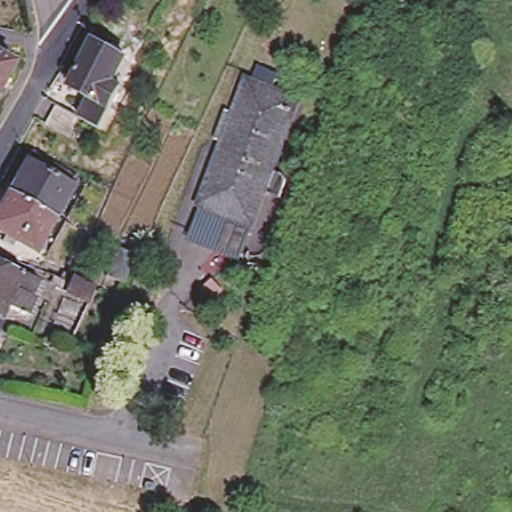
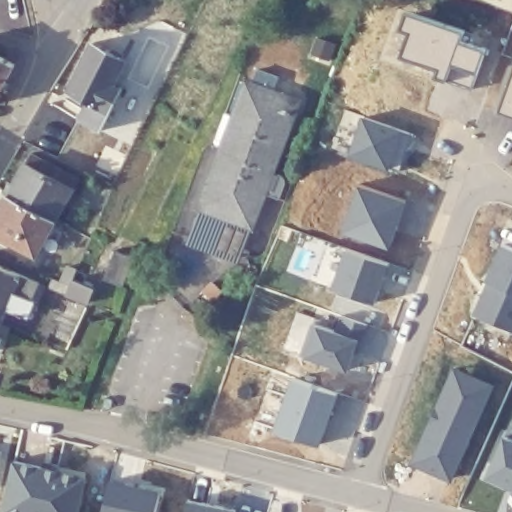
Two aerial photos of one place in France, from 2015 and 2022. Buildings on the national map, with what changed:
new [(461,34),(458,45),(482,53),(472,90),(435,80),(437,72),(398,59),(407,36),(399,32),(405,15),(461,34)]
unchanged [(92,101),(72,91),(95,45),(127,61),(114,87),(122,91),(102,132),(82,121),(71,140),(47,126),(57,108),(80,121),(92,101)]
unchanged [(0,50),(18,61),(0,91),(0,50)]
unchanged [(183,240),(192,218),(195,219),(197,211),(195,210),(213,162),(222,166),(227,150),(213,145),(224,117),(228,119),(243,83),(250,85),(255,71),(275,78),(268,92),(296,103),(268,175),(275,177),(276,178),(277,179),(278,180),(278,181),(279,181),(280,183),(280,184),(280,185),(280,186),(280,187),(273,201),(260,196),(248,225),(246,230),(232,224),(229,232),(243,237),(235,259),(212,250),(202,247),(186,241),(183,240)]
new [(498,114),(512,75),(512,119),(498,114)]
new [(407,135),(395,172),(347,159),(361,119),(407,135)]
unchanged [(4,190),(22,159),(27,150),(73,176),(68,185),(51,216),(4,190)]
new [(405,204),(388,252),(340,236),(355,188),(405,204)]
unchanged [(0,197),(4,190),(51,216),(31,250),(0,233),(0,197)]
unchanged [(135,248),(125,277),(108,271),(118,242),(135,248)]
new [(491,284),(489,283),(505,246),(512,249),(512,332),(477,317),(491,284)]
new [(387,268),(373,308),(330,292),(343,254),(387,268)]
unchanged [(8,298),(2,312),(0,311),(0,256),(22,265),(43,274),(30,307),(8,298)]
unchanged [(95,280),(90,293),(92,294),(91,297),(66,286),(67,285),(54,279),(60,270),(64,266),(75,271),(95,280)]
unchanged [(0,311),(2,312),(0,317),(0,311)]
new [(349,372),(304,356),(315,324),(337,332),(343,317),(369,326),(363,343),(358,355),(356,354),(360,342),(349,372)]
new [(494,386),(450,485),(410,468),(452,369),(494,386)]
new [(337,395),(318,449),(271,436),(290,380),(337,395)]
new [(506,438),(512,441),(512,489),(488,479),(506,438)]
new [(0,465),(0,453),(2,454),(0,465)]
new [(78,512),(0,512),(0,504),(12,464),(85,481),(78,512)]
new [(154,512),(101,512),(107,483),(158,494),(154,512)]
new [(238,512),(188,512),(191,501),(238,512)]

